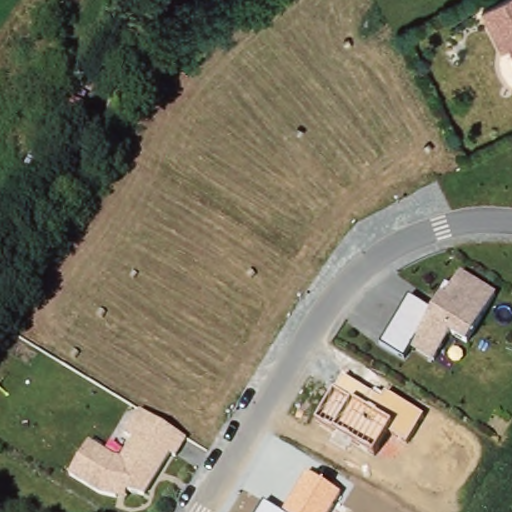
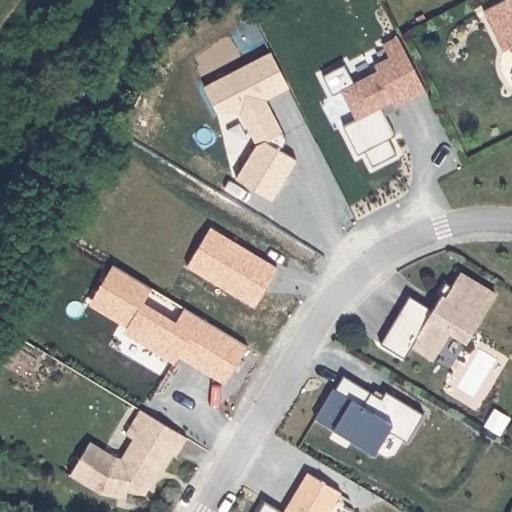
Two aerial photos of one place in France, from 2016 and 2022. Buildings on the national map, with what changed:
unchanged [(500,0),(512,0),(512,45),(506,48),(498,32),(485,8),(500,0)]
new [(373,166),(365,151),(357,153),(343,125),(355,120),(340,89),(332,94),(323,75),(343,66),(352,82),(376,71),(373,65),(388,57),(381,44),(397,37),(424,92),(381,112),(394,135),(387,139),(395,154),(373,166)]
new [(266,99),(286,140),(279,150),(296,160),(272,199),(236,177),(255,145),(240,114),(215,111),(203,87),(271,52),(288,87),(266,99)]
unchanged [(80,129),(69,124),(55,117),(66,94),(91,106),(80,129)]
unchanged [(40,139),(64,155),(41,188),(19,175),(40,139)]
new [(223,383),(178,356),(172,364),(123,333),(127,326),(89,304),(112,265),(151,289),(143,303),(176,322),(184,308),(245,346),(223,383)]
unchanged [(464,344),(448,335),(433,360),(410,346),(402,357),(380,344),(408,296),(432,310),(445,283),(450,286),(459,270),(496,293),(464,344)]
unchanged [(372,392),(374,389),(421,416),(407,442),(391,425),(374,455),(333,428),(314,419),(343,376),(372,392)]
unchanged [(177,450),(178,452),(151,492),(125,486),(123,494),(107,491),(76,472),(96,439),(119,453),(124,454),(136,434),(129,430),(143,406),(189,434),(177,450)]
unchanged [(330,512),(282,512),(306,473),(342,493),(330,512)]
unchanged [(281,512),(260,512),(266,503),(281,512)]

